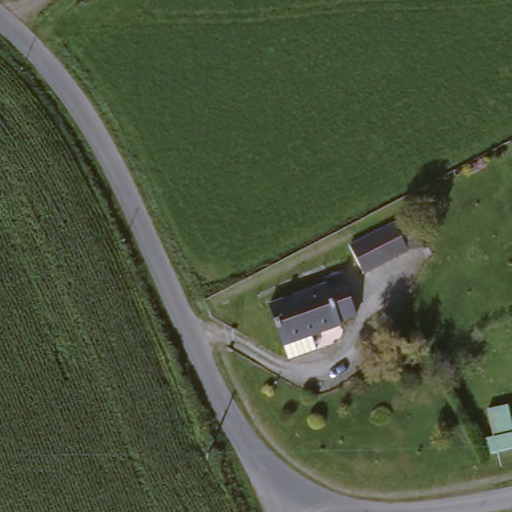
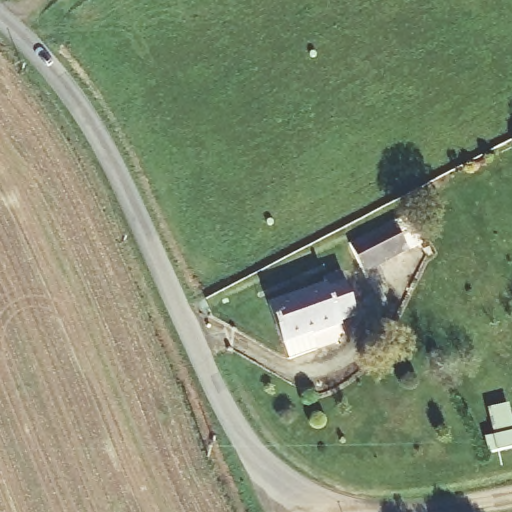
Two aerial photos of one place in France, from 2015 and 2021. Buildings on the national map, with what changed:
unchanged [(361,280),(347,250),(392,227),(406,256),(361,280)]
unchanged [(337,318),(338,324),(310,336),(315,348),(287,358),(264,304),(324,283),(327,287),(343,282),(351,306),(353,313),(337,318)]
unchanged [(479,444),(487,442),(482,413),(503,407),(509,433),(512,433),(512,456),(483,461),(479,444)]

